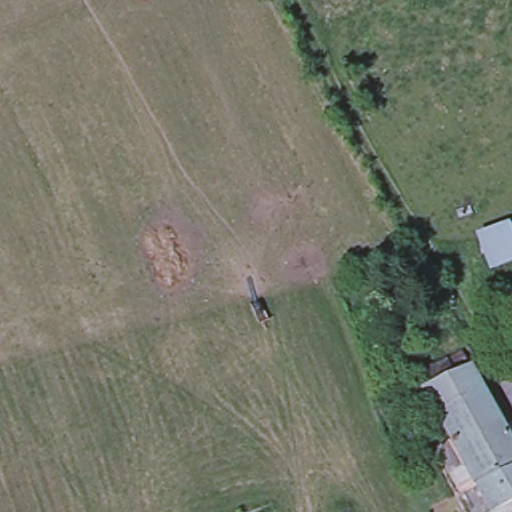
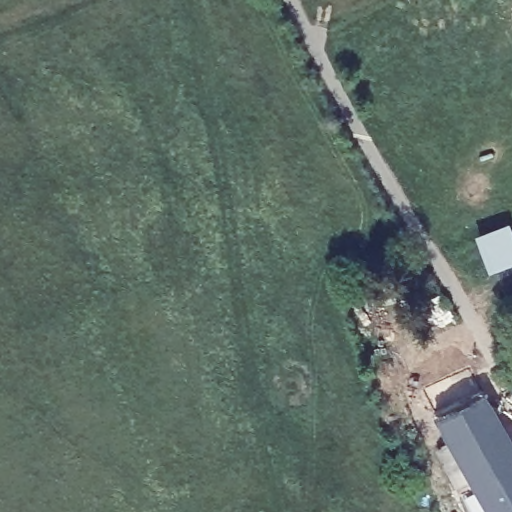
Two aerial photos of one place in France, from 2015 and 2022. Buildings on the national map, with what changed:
unchanged [(512,237),(512,262),(496,270),(479,240),(505,225),(512,237)]
unchanged [(462,376),(455,363),(467,357),(475,370),(492,402),(446,425),(427,391),(462,376)]
unchanged [(447,452),(458,447),(446,425),(492,402),(512,439),(512,512),(475,512),(445,453),(447,452)]

